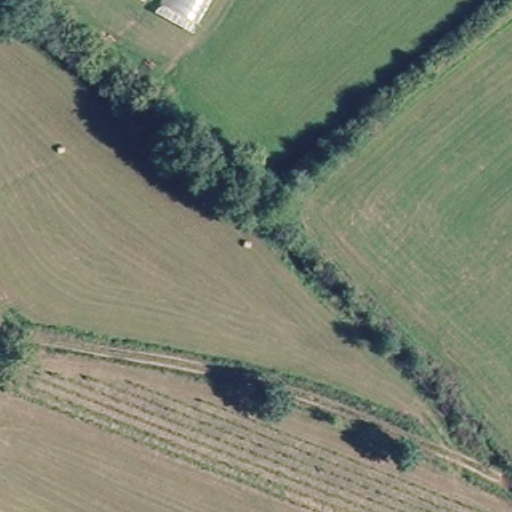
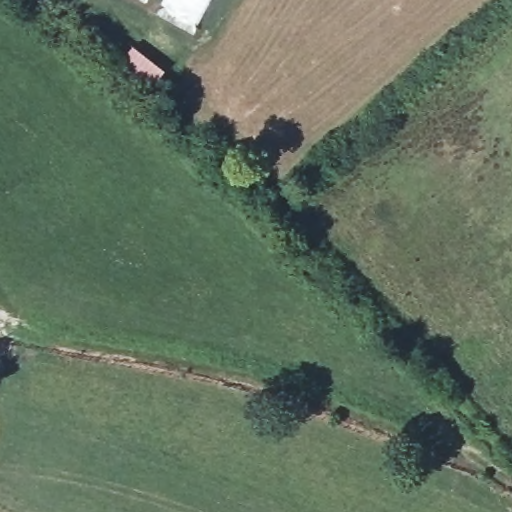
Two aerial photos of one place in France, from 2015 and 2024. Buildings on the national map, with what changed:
unchanged [(198,30),(146,0),(215,0),(198,30)]

